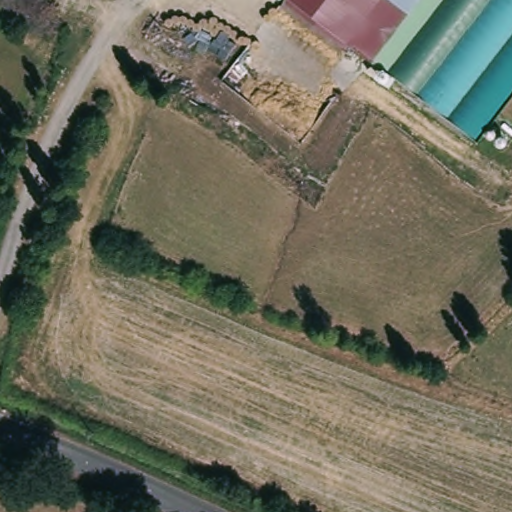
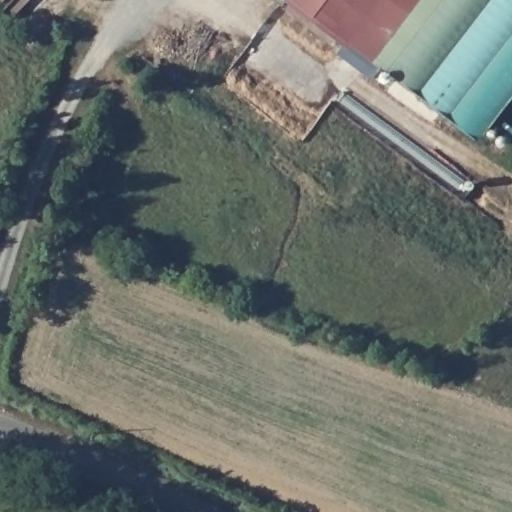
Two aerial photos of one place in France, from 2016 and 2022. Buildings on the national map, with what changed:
unchanged [(371,62),(290,0),(419,0),(371,62)]
unchanged [(512,99),(478,143),(388,74),(445,0),(512,0),(512,99)]

